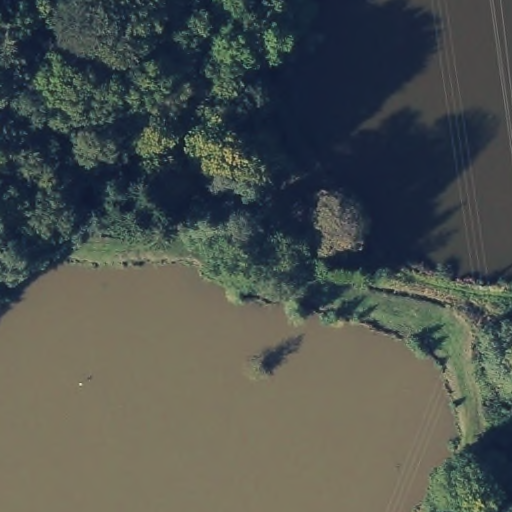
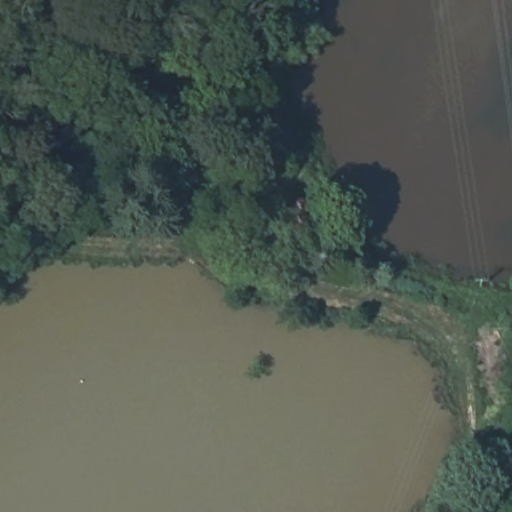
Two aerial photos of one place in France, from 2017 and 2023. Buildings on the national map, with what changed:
unchanged [(299,203),(313,215),(294,236),(281,225),(299,203)]

